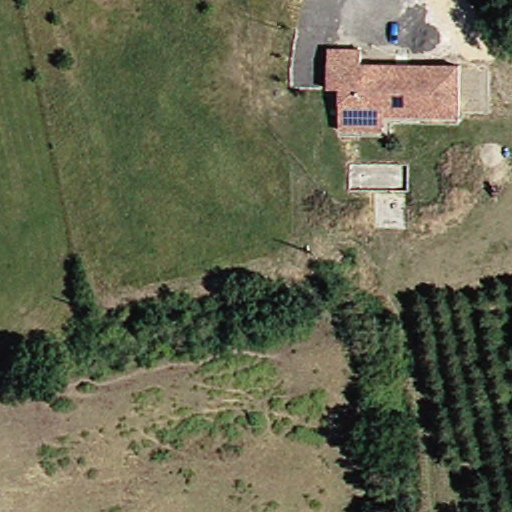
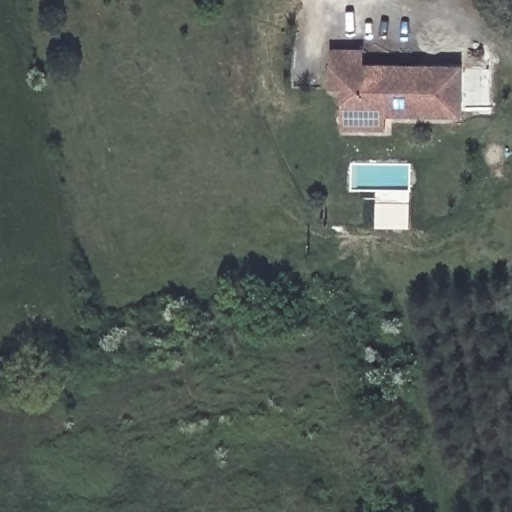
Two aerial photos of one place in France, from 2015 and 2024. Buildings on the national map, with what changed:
unchanged [(435,123),(421,123),(336,123),(335,68),(458,66),(458,96),(459,123),(435,123)]

